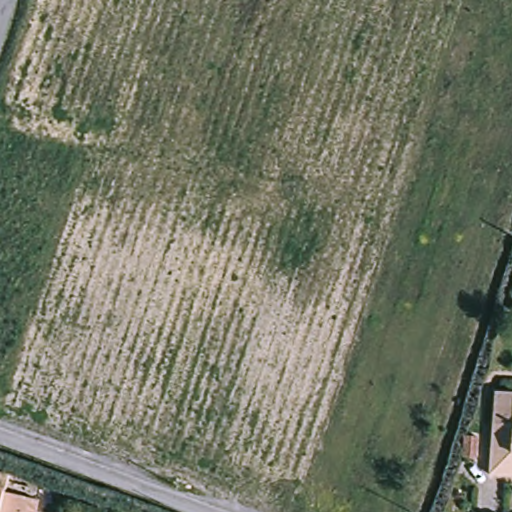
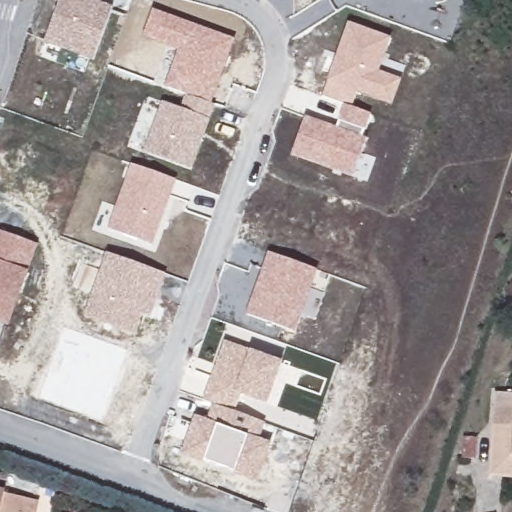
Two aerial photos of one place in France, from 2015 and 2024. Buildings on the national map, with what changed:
new [(45,42),(60,0),(94,0),(114,7),(92,60),(45,42)]
new [(180,108),(187,94),(164,85),(178,51),(142,38),(153,9),(235,38),(211,103),(215,103),(192,168),(146,151),(162,101),(180,108)]
new [(392,104),(359,91),(353,107),(371,113),(362,136),(367,138),(354,175),(293,154),(306,116),(336,126),(345,103),(324,96),(348,21),(391,37),(379,70),(400,78),(392,104)]
new [(177,179),(153,245),(109,228),(132,164),(177,179)]
new [(0,347),(0,231),(37,245),(29,270),(8,326),(0,347)]
new [(133,333),(85,314),(107,252),(167,274),(151,318),(141,313),(133,333)]
new [(268,252),(317,271),(295,332),(247,313),(268,252)]
new [(282,361),(268,404),(241,396),(235,411),(265,422),(260,438),(273,443),(259,483),(234,474),(204,463),(181,454),(196,415),(207,419),(213,404),(203,400),(225,340),(250,349),(282,361)]
unchanged [(496,425),(498,392),(512,393),(512,426),(496,425)]
unchanged [(493,474),(496,425),(512,426),(512,475),(493,474)]
unchanged [(6,488),(38,497),(35,512),(0,512),(0,473),(9,475),(6,488)]

